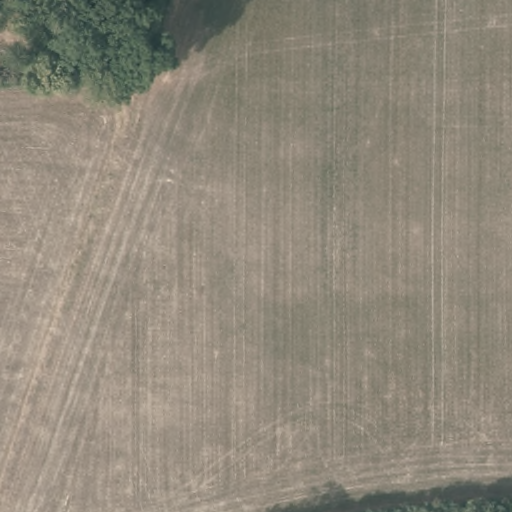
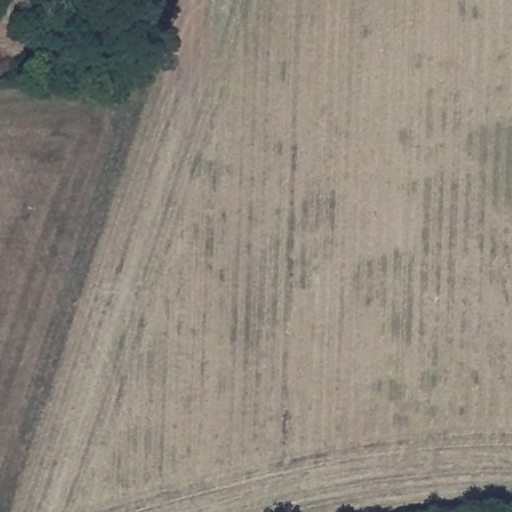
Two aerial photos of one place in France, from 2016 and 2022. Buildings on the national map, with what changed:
[]

